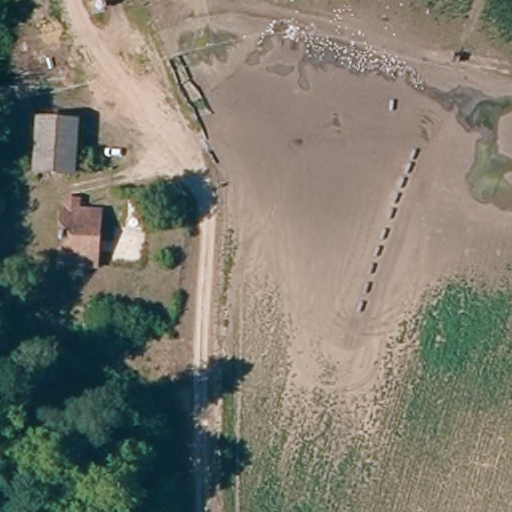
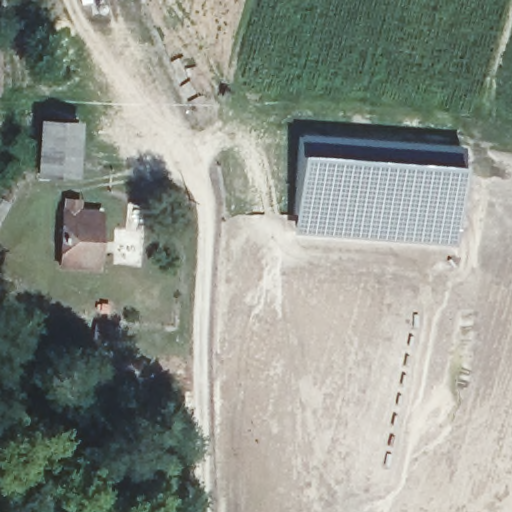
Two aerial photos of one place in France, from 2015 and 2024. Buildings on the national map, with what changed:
unchanged [(73,169),(38,166),(42,127),(76,127),(73,169)]
new [(298,149),(459,163),(451,247),(361,242),(292,235),(298,149)]
unchanged [(1,185),(18,197),(0,225),(0,186),(1,185)]
unchanged [(105,226),(101,258),(52,252),(56,220),(105,226)]

